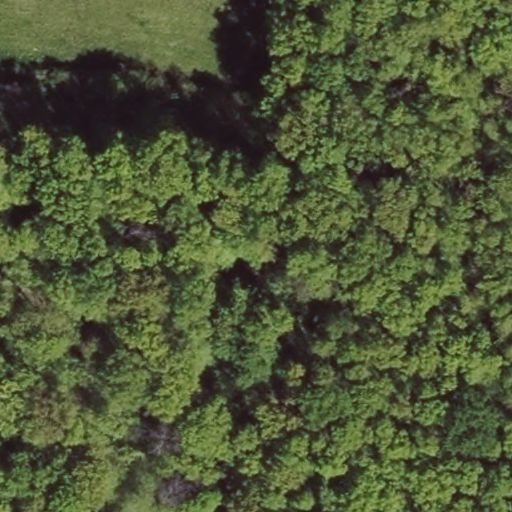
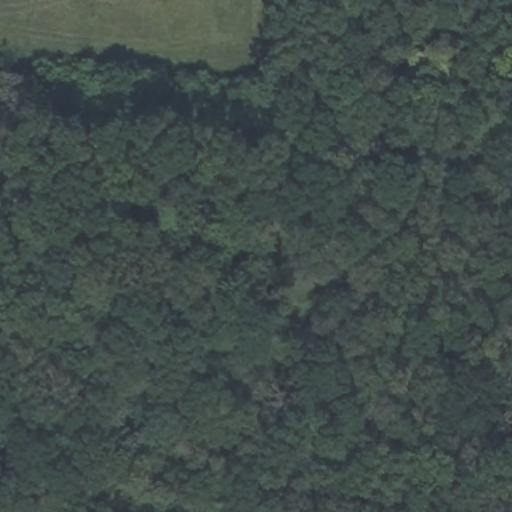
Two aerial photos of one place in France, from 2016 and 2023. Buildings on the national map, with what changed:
[]

